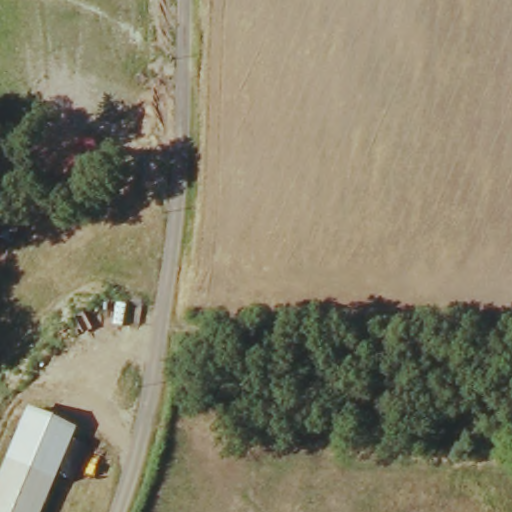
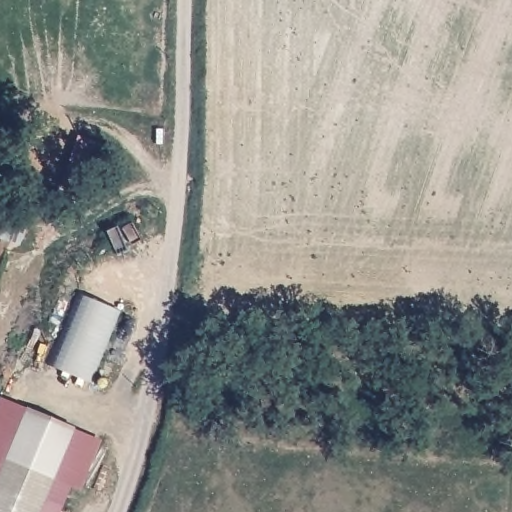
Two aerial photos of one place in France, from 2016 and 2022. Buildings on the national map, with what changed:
new [(118,309),(90,383),(51,367),(80,294),(118,309)]
new [(6,455),(3,454),(0,462),(0,399),(25,408),(6,455)]
unchanged [(75,427),(54,474),(6,455),(26,407),(75,427)]
unchanged [(38,512),(0,512),(0,462),(3,454),(54,474),(38,512)]

